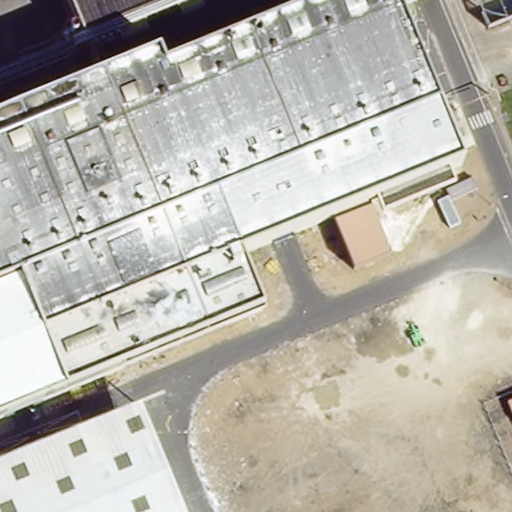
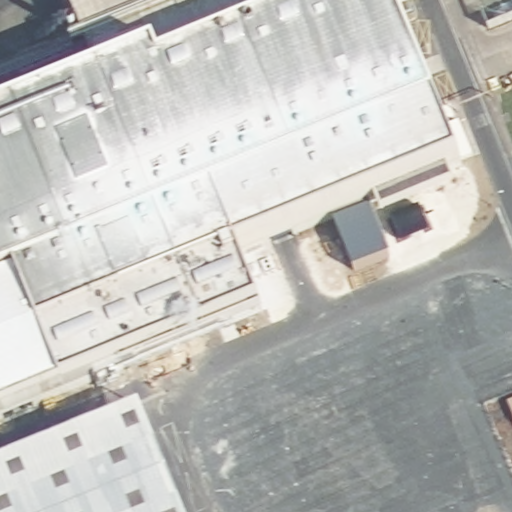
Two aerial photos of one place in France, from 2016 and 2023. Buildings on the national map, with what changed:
unchanged [(64,43),(81,36),(70,0),(422,0),(398,9),(460,161),(445,168),(328,219),(241,258),(262,310),(0,416),(0,111),(77,80),(64,43)]
unchanged [(445,168),(452,189),(374,218),(387,255),(349,270),(328,219),(445,168)]
unchanged [(182,512),(0,512),(0,460),(138,406),(182,512)]

